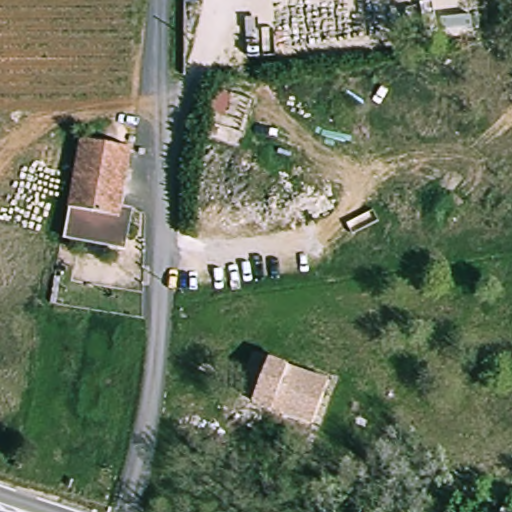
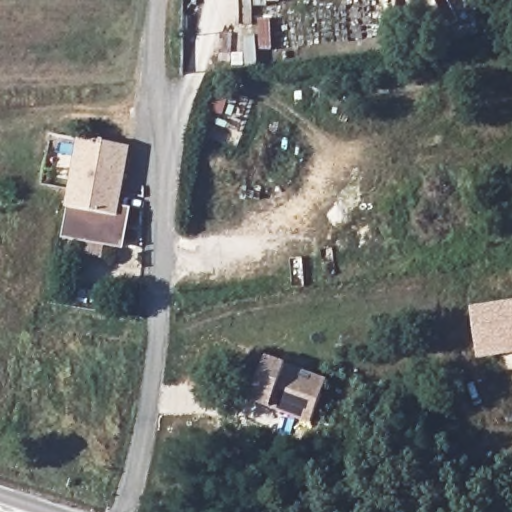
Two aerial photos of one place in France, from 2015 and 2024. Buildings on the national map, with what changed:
unchanged [(122,203),(115,247),(59,237),(75,141),(120,149),(111,201),(122,203)]
new [(512,307),(512,354),(480,359),(473,313),(512,307)]
unchanged [(251,391),(236,385),(248,352),(323,381),(306,425),(274,412),(247,401),(251,391)]

